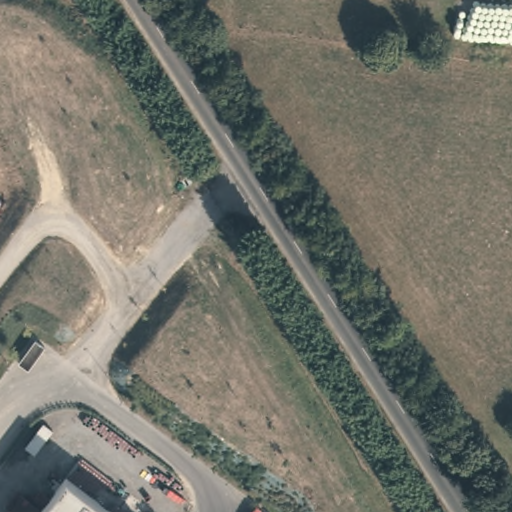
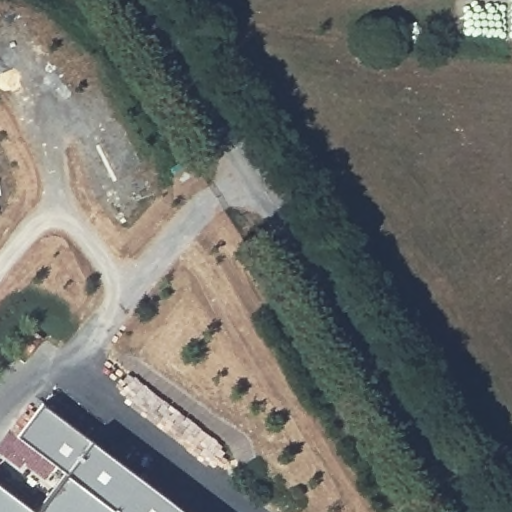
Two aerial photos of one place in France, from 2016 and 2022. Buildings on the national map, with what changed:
new [(90,440),(65,475),(15,437),(41,403),(90,440)]
new [(90,440),(183,512),(114,512),(65,475),(90,440)]
unchanged [(114,512),(37,512),(65,475),(114,512)]

